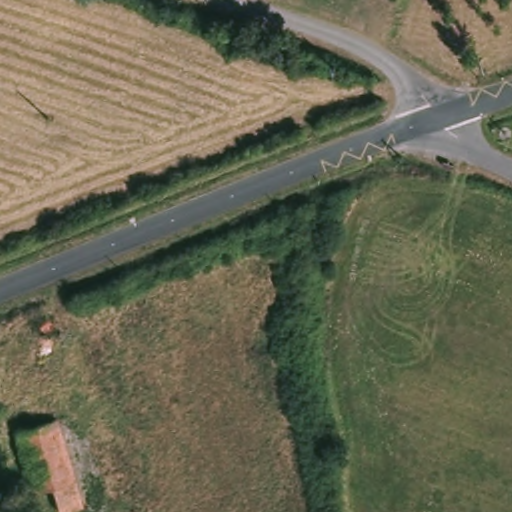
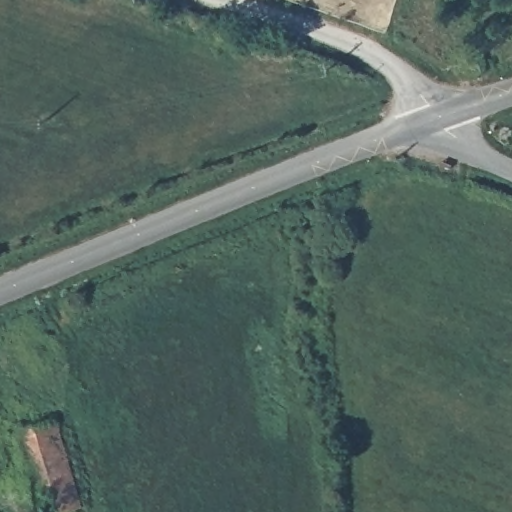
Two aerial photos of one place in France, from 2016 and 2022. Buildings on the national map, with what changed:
unchanged [(85,512),(66,512),(60,494),(44,499),(23,441),(25,440),(45,434),(60,429),(80,488),(89,511),(85,512)]
unchanged [(0,457),(0,446),(3,456),(0,457)]

